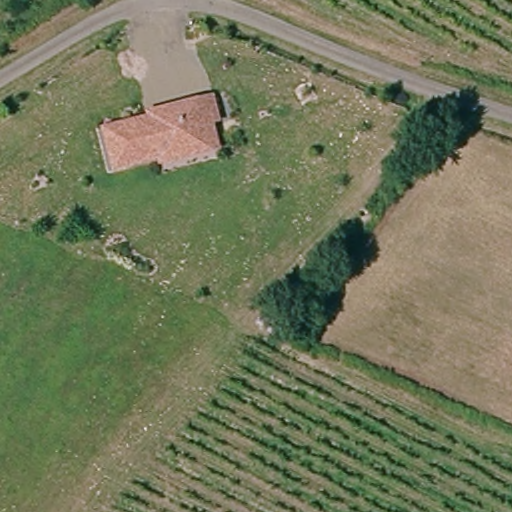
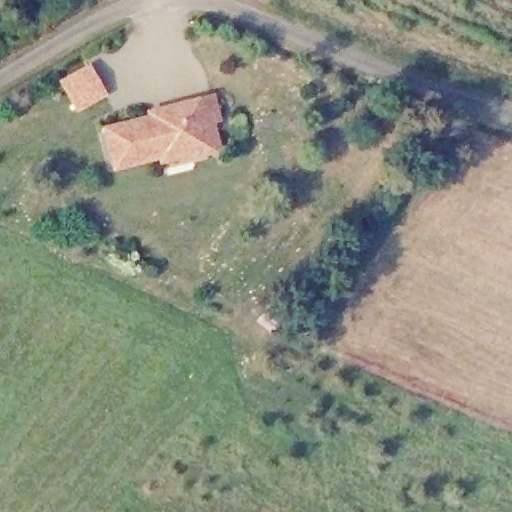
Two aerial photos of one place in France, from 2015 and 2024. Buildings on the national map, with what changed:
new [(76,114),(57,81),(90,63),(108,96),(76,114)]
unchanged [(111,168),(103,129),(148,119),(147,114),(157,112),(196,103),(211,100),(216,123),(208,125),(214,151),(202,153),(187,157),(157,162),(156,158),(111,168)]

